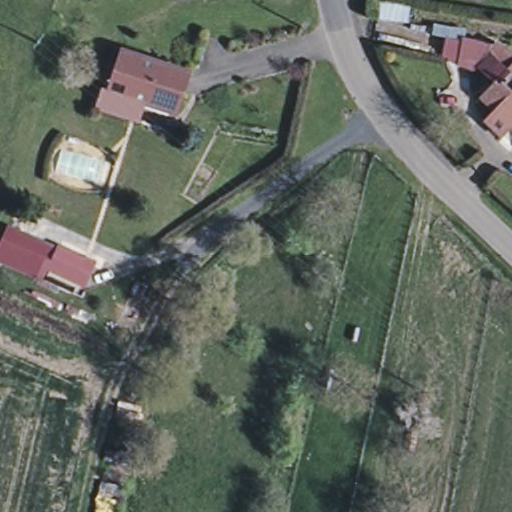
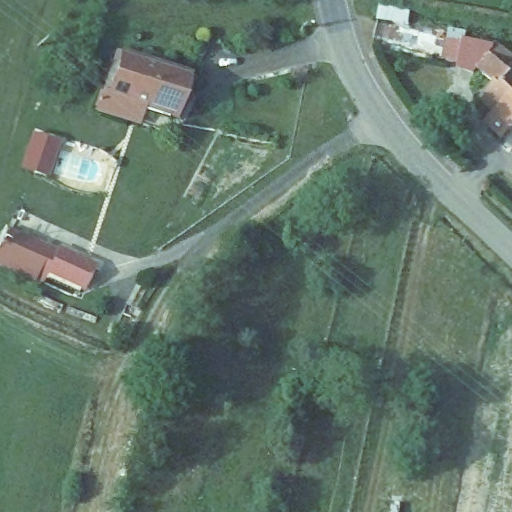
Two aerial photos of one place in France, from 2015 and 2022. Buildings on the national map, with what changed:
unchanged [(498,113),(482,97),(495,85),(479,70),(475,73),(466,64),(469,37),(495,50),(490,55),(491,57),(511,76),(503,85),(512,94),(512,119),(502,109),(498,113)]
unchanged [(98,101),(118,44),(124,46),(185,67),(171,109),(145,100),(139,115),(98,101)]
unchanged [(90,261),(78,285),(72,282),(68,291),(1,260),(0,260),(0,238),(5,226),(10,229),(54,249),(56,245),(90,261)]

